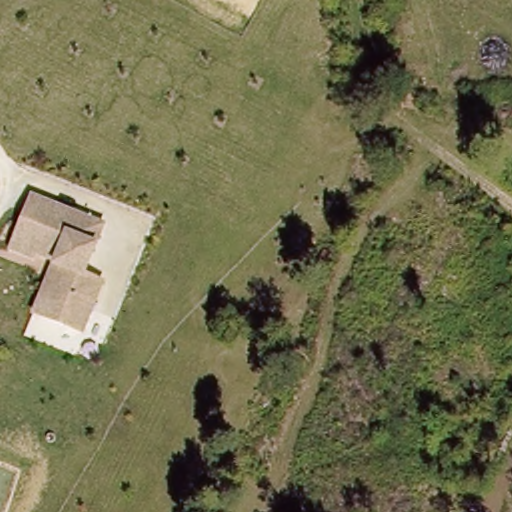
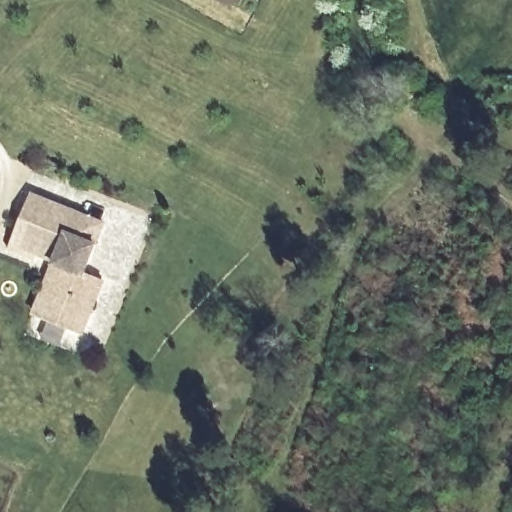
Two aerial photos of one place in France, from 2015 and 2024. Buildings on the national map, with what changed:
unchanged [(46,313),(38,310),(56,260),(57,257),(39,250),(37,256),(12,247),(15,241),(26,209),(33,191),(36,192),(106,218),(87,268),(107,275),(96,304),(87,328),(75,324),(46,313)]

